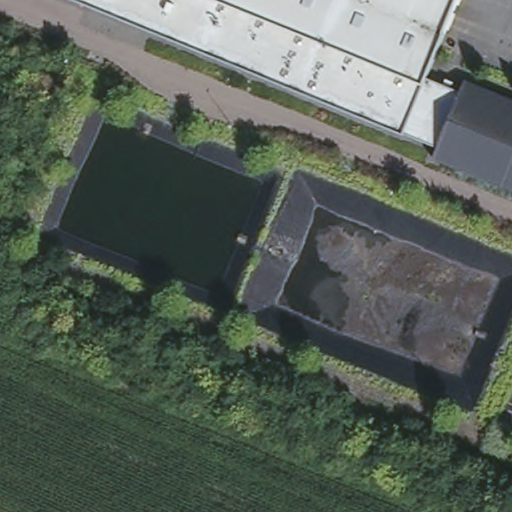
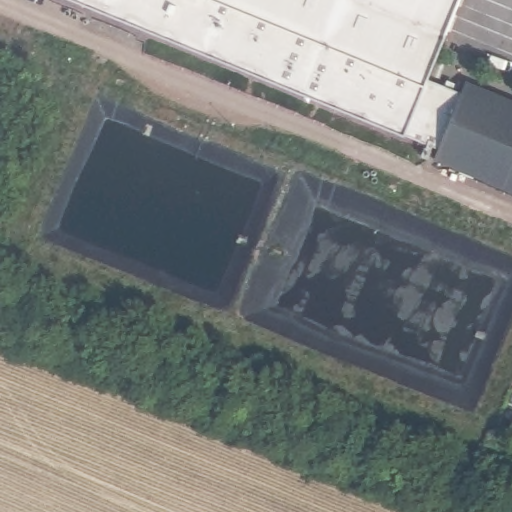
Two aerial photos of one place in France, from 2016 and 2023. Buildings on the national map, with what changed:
unchanged [(102,0),(458,0),(429,70),(465,86),(471,71),(512,88),(512,180),(440,150),(443,140),(102,0)]

